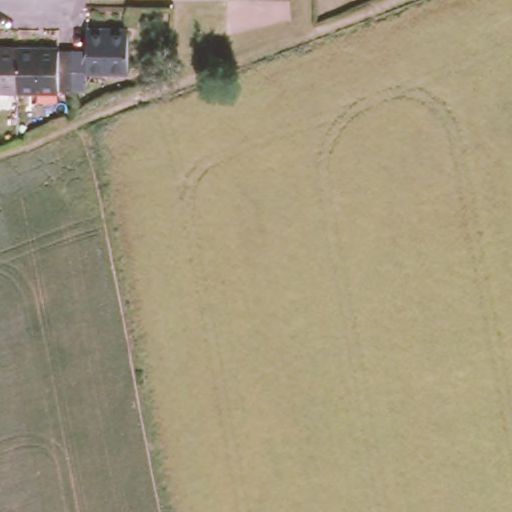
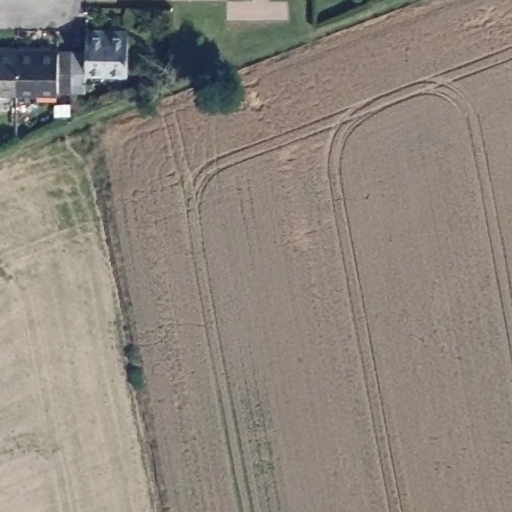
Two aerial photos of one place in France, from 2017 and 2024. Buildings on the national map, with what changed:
unchanged [(127,64),(84,65),(85,85),(71,84),(71,44),(86,44),(86,25),(127,25),(127,64)]
unchanged [(71,44),(71,84),(16,84),(16,45),(71,44)]
unchanged [(16,45),(16,84),(0,84),(0,45),(16,45)]

